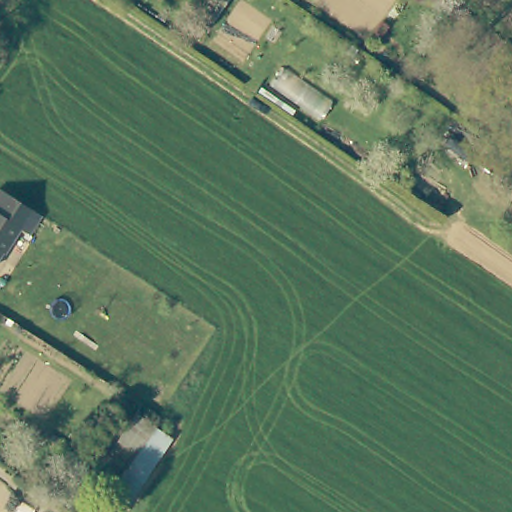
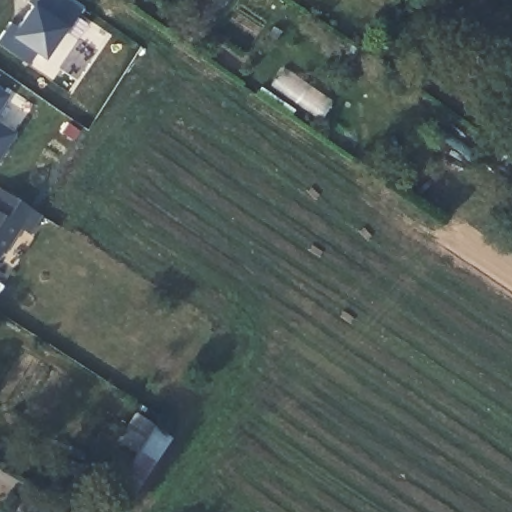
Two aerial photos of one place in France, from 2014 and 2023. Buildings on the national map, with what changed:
new [(69,29),(67,27),(46,58),(38,53),(30,65),(0,45),(0,42),(6,32),(14,37),(35,6),(30,3),(32,0),(74,0),(84,7),(69,29)]
new [(14,37),(6,32),(12,23),(20,29),(14,37)]
new [(0,112),(0,89),(10,96),(0,112)]
new [(0,160),(0,122),(17,133),(0,160)]
unchanged [(30,234),(19,227),(4,254),(1,252),(0,254),(0,189),(41,215),(30,234)]
unchanged [(137,453),(118,440),(138,411),(173,437),(122,512),(107,501),(137,453)]

